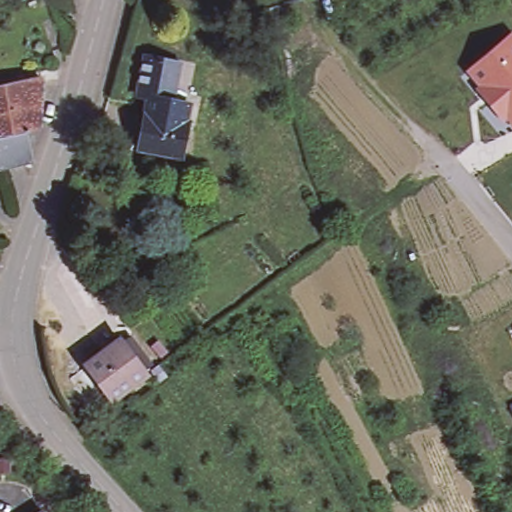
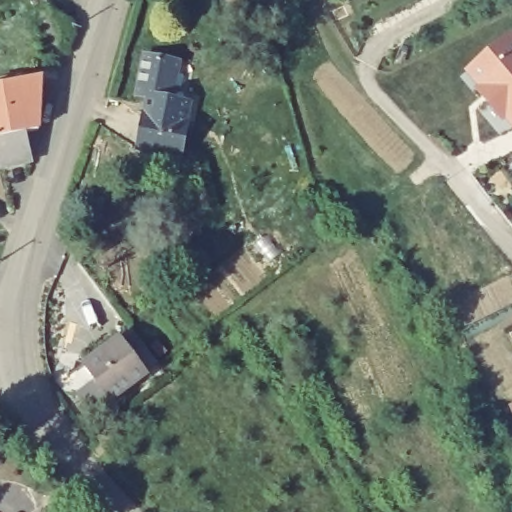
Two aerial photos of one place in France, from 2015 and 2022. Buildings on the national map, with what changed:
unchanged [(512,33),(512,129),(464,70),(512,33)]
unchanged [(142,148),(152,96),(140,93),(148,57),(180,64),(173,99),(193,104),(183,156),(142,148)]
unchanged [(0,167),(0,85),(44,76),(42,127),(38,128),(30,130),(37,159),(0,167)]
unchanged [(117,336),(142,369),(107,396),(82,362),(117,336)]

